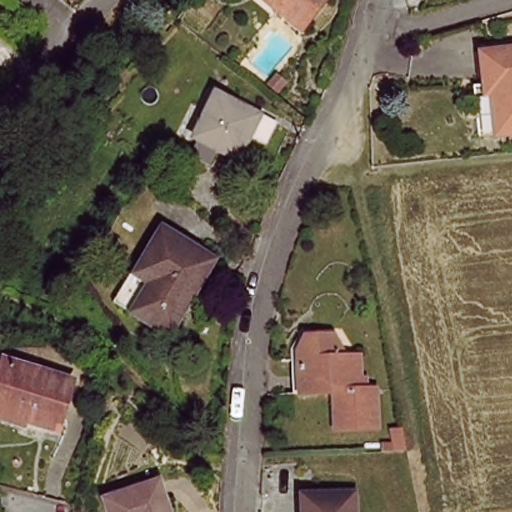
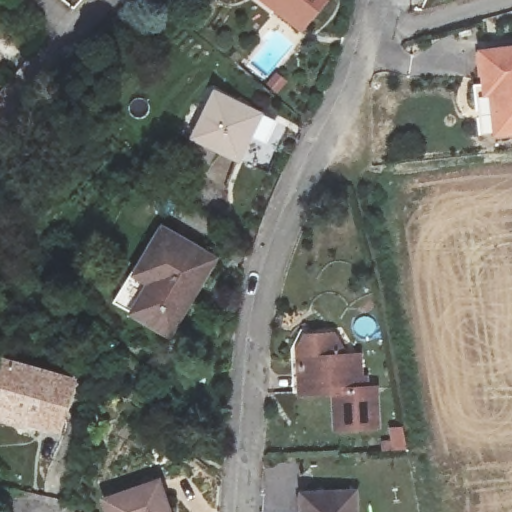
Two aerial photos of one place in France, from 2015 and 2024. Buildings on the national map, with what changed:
unchanged [(301,31),(275,9),(278,3),(275,0),(328,0),(301,31)]
unchanged [(512,54),(512,135),(500,137),(490,100),(493,99),(492,91),(483,93),(476,60),(512,54)]
unchanged [(258,116),(238,158),(197,136),(217,95),(258,116)]
unchanged [(213,262),(172,335),(137,314),(155,282),(140,272),(165,232),(213,262)]
unchanged [(362,359),(362,392),(377,393),(377,429),(336,430),(335,393),(302,392),(302,357),(302,349),(308,336),(330,336),(335,350),(335,358),(362,359)]
unchanged [(63,417),(30,408),(25,423),(0,416),(0,375),(3,360),(73,379),(63,417)]
unchanged [(169,512),(117,512),(113,495),(160,482),(169,512)]
unchanged [(353,512),(302,512),(302,490),(353,491),(353,512)]

